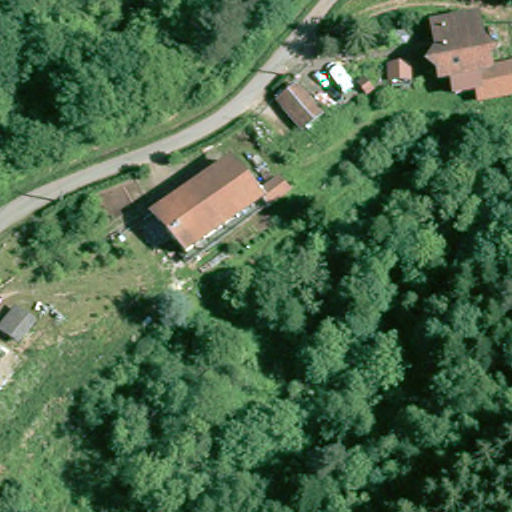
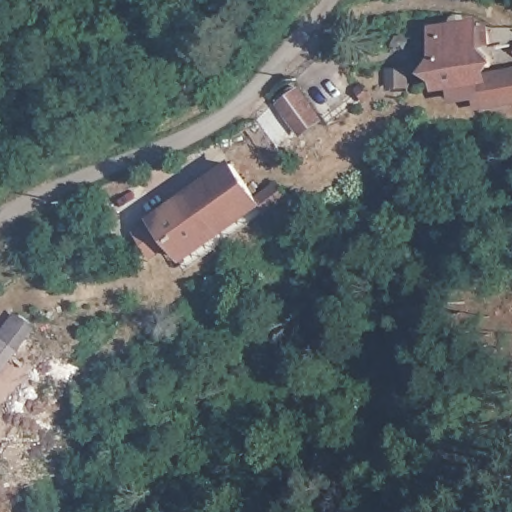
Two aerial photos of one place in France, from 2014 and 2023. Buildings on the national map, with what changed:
unchanged [(485,51),(499,62),(512,61),(512,99),(474,105),(474,98),(449,100),(448,92),(437,93),(428,23),(481,18),(485,51)]
unchanged [(409,70),(410,83),(397,85),(395,72),(409,70)]
unchanged [(298,92),(319,120),(303,132),(282,103),(298,92)]
unchanged [(191,254),(177,235),(160,248),(144,227),(237,159),(266,199),(191,254)]

